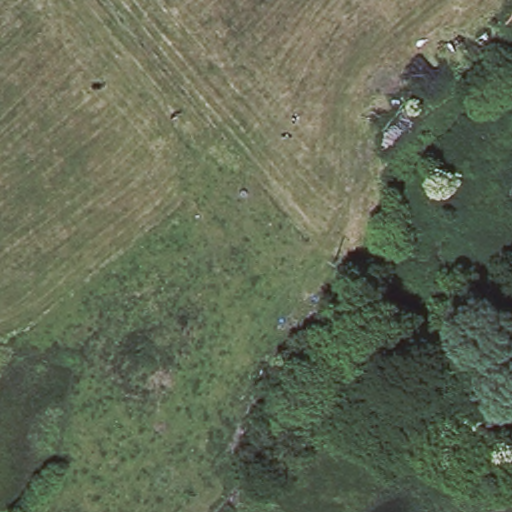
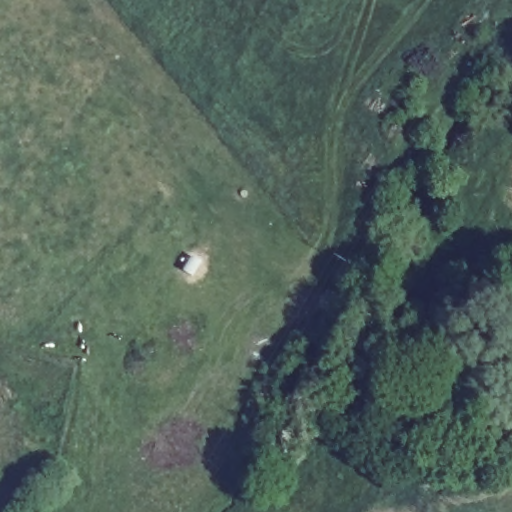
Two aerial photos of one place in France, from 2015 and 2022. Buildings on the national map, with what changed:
[]

